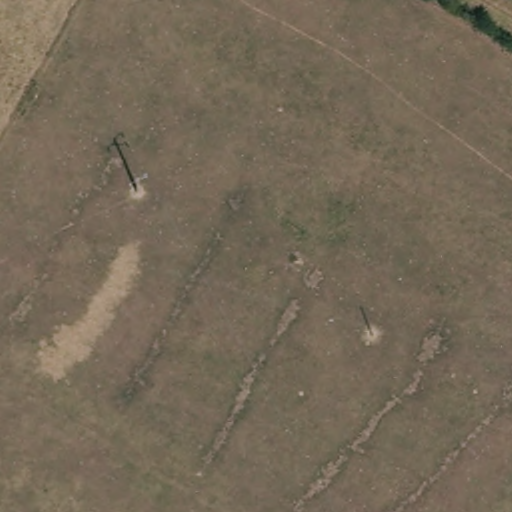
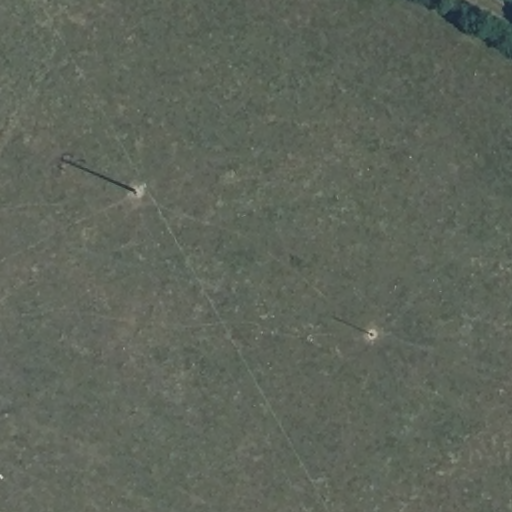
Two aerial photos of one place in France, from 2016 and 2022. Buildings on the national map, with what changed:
[]

